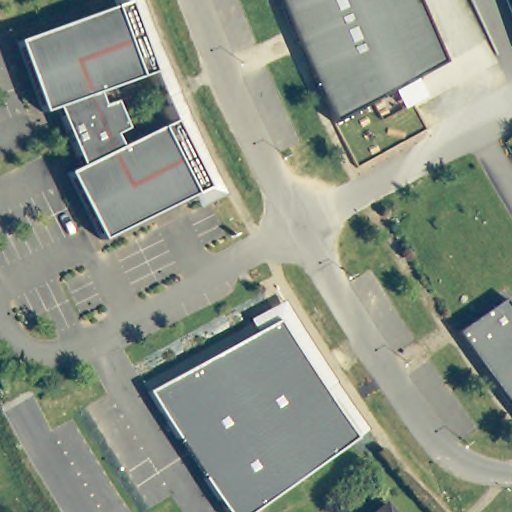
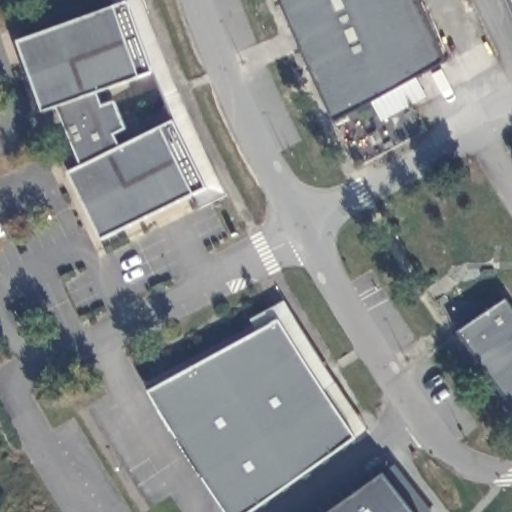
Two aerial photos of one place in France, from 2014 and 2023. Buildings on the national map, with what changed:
unchanged [(98,89),(103,102),(115,99),(127,125),(115,131),(121,144),(174,118),(208,184),(194,192),(102,237),(69,169),(82,163),(58,104),(44,109),(18,39),(115,4),(126,0),(129,0),(154,69),(98,89)]
unchanged [(114,0),(126,0),(115,4),(114,0)]
unchanged [(201,136),(228,191),(201,205),(194,192),(208,184),(174,118),(154,69),(129,0),(146,0),(159,37),(201,136)]
unchanged [(315,80),(282,0),(420,0),(445,59),(335,120),(315,80)]
unchanged [(512,304),(512,404),(481,364),(479,363),(457,329),(506,296),(512,304)]
unchanged [(255,333),(249,319),(283,300),(319,359),(348,403),(367,429),(355,438),(251,512),(226,512),(146,392),(255,333)]
new [(383,474),(395,462),(434,512),(331,512),(383,474)]
demolished [(399,512),(377,512),(389,501),(399,512)]

